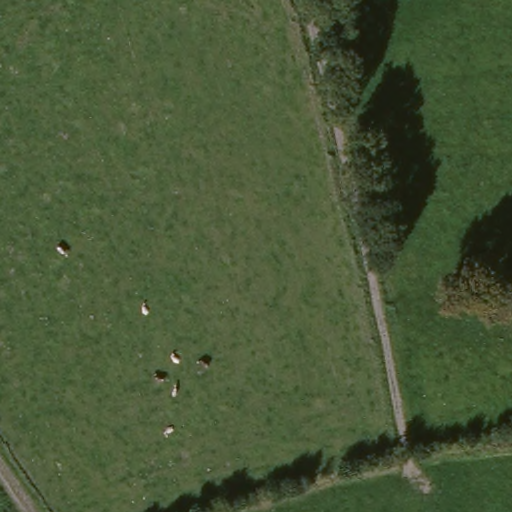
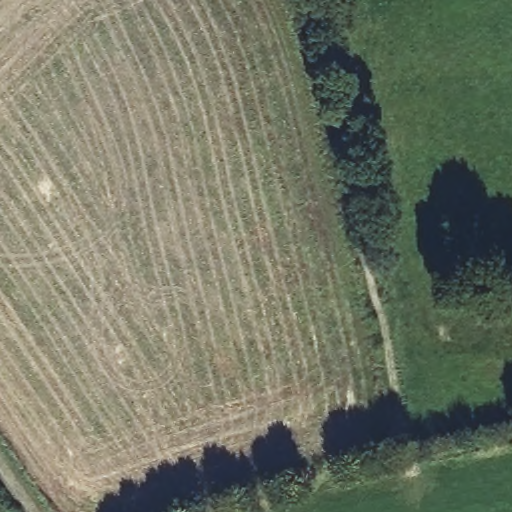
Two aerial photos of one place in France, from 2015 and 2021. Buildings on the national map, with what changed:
[]

